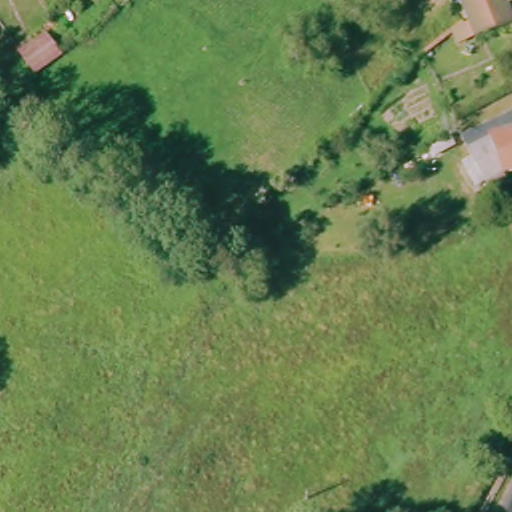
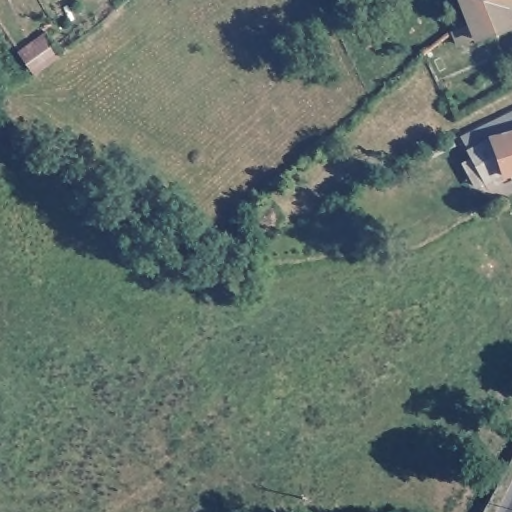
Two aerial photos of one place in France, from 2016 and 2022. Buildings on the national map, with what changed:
unchanged [(512,17),(512,23),(478,39),(462,0),(512,0),(512,1),(508,3),(512,17)]
unchanged [(41,35),(58,56),(31,74),(14,53),(41,35)]
unchanged [(463,138),(512,112),(512,172),(500,176),(490,187),(486,181),(463,138)]

